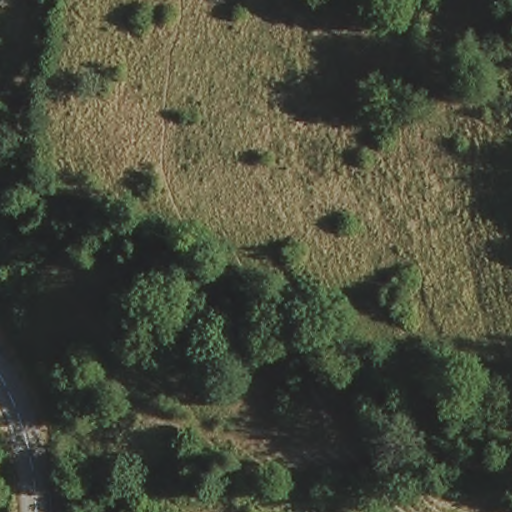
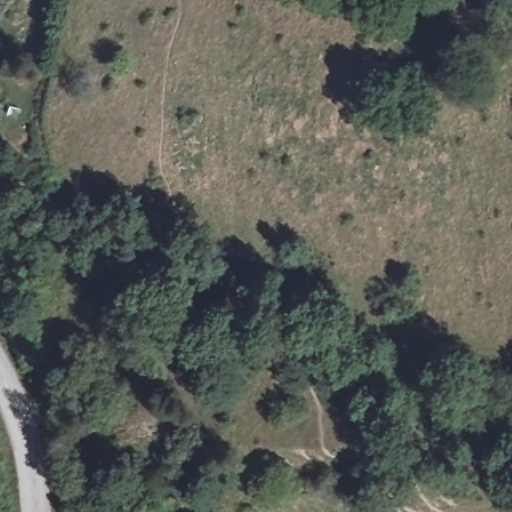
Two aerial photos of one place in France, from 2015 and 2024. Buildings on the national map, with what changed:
[]

